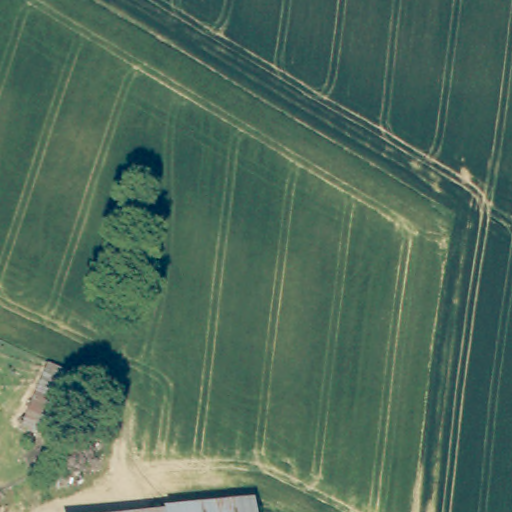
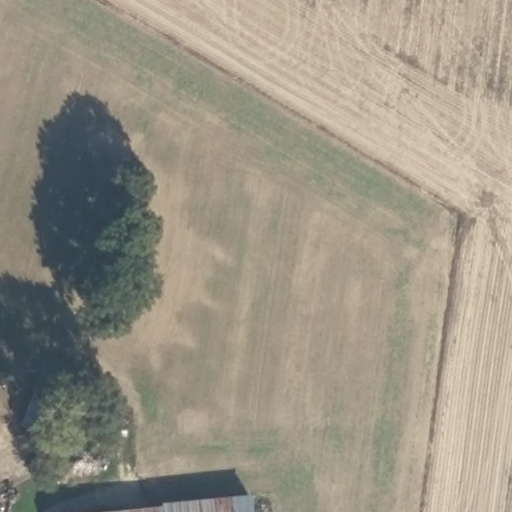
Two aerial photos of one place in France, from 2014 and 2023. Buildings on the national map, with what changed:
unchanged [(29,421),(46,380),(72,390),(54,431),(29,421)]
unchanged [(254,512),(228,512),(254,510),(254,512)]

